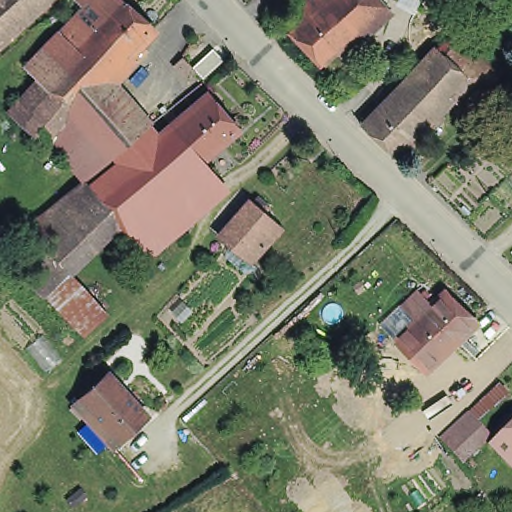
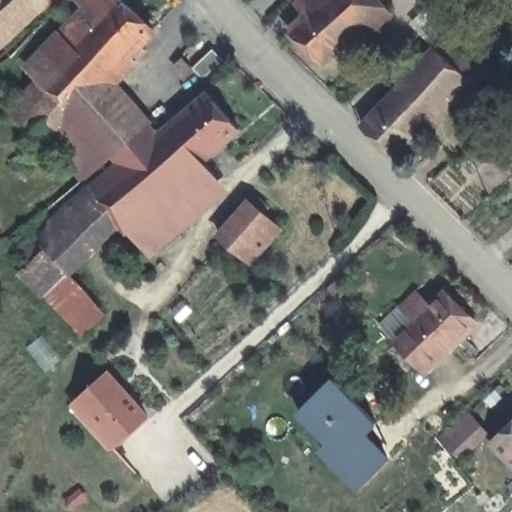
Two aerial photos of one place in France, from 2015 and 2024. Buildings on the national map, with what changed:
unchanged [(0,53),(0,0),(60,0),(0,53)]
unchanged [(163,32),(122,85),(160,125),(207,85),(247,132),(211,165),(234,189),(150,264),(124,232),(76,277),(112,314),(85,340),(2,251),(82,181),(5,111),(35,78),(22,65),(81,4),(77,0),(128,0),(163,32)]
unchanged [(296,34),(315,15),(307,5),(312,0),(382,0),(390,8),(387,11),(393,18),(369,41),(362,35),(327,67),(296,34)]
unchanged [(443,37),(477,69),(490,82),(460,114),(444,98),(413,70),(443,37)]
unchanged [(444,98),(412,132),(382,104),(413,70),(444,98)]
unchanged [(386,158),(357,130),(382,104),(412,132),(386,158)]
demolished [(501,115),(512,104),(512,126),(501,115)]
unchanged [(250,195),(260,203),(255,208),(246,200),(250,195)]
unchanged [(242,260),(224,244),(255,208),(274,224),(242,260)]
unchanged [(404,342),(420,326),(407,313),(423,298),(435,311),(451,296),(479,324),(458,345),(422,378),(395,350),(404,342)]
demolished [(397,390),(404,398),(372,429),(344,401),(373,372),(376,369),(397,390)]
unchanged [(77,399),(105,373),(142,415),(115,441),(109,447),(71,405),(77,399)]
new [(320,451),(327,443),(297,412),(334,376),(380,424),(370,433),(393,457),(358,490),(320,451)]
unchanged [(497,383),(504,390),(472,422),(485,437),(463,459),(443,437),(497,383)]
unchanged [(492,442),(512,422),(512,462),(492,442)]

